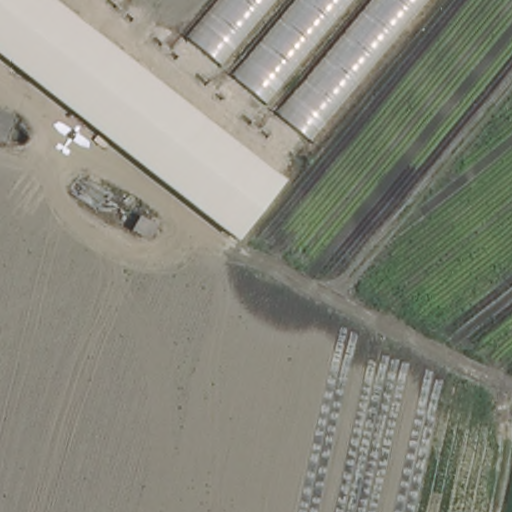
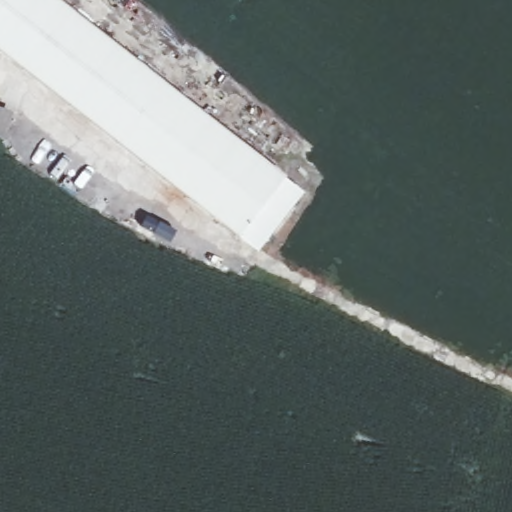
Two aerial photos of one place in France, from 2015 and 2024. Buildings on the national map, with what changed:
unchanged [(57,0),(285,182),(240,240),(0,53),(0,0),(57,0)]
demolished [(144,0),(431,0),(312,144),(144,0)]
unchanged [(12,116),(3,139),(0,138),(0,111),(12,116)]
unchanged [(157,225),(150,238),(135,230),(143,216),(157,225)]

